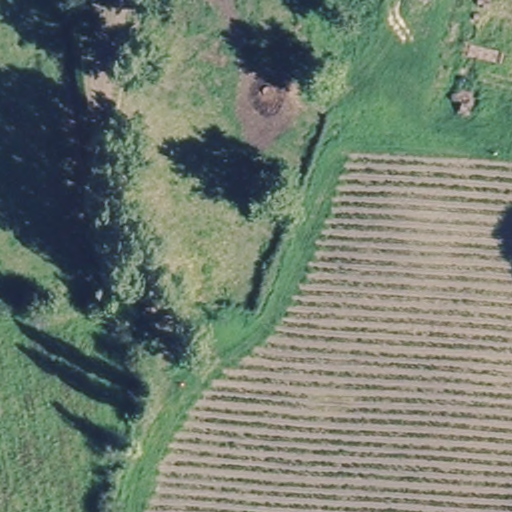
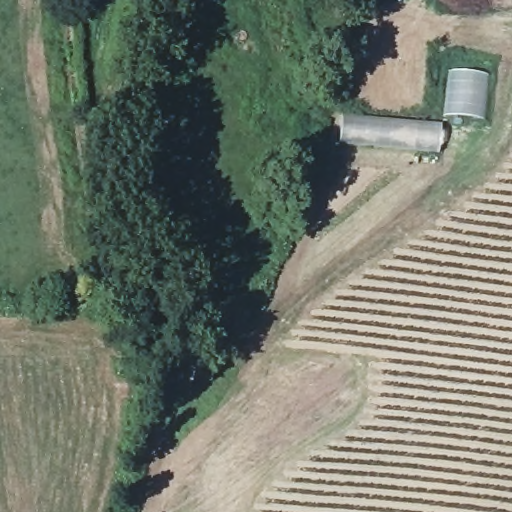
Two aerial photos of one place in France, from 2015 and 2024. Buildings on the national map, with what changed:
new [(447,66),(490,72),(485,120),(442,115),(447,66)]
new [(340,114),(399,117),(442,121),(439,154),(338,144),(340,114)]

